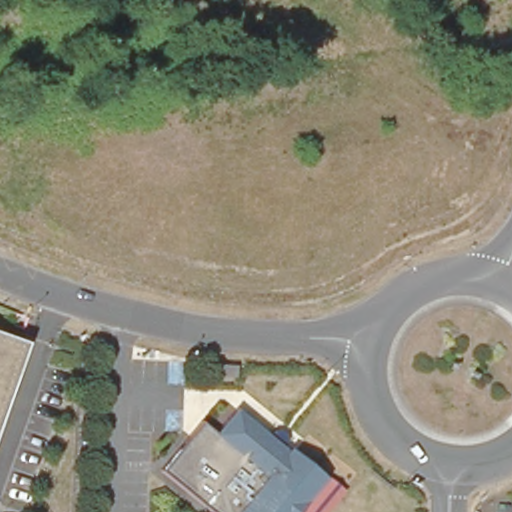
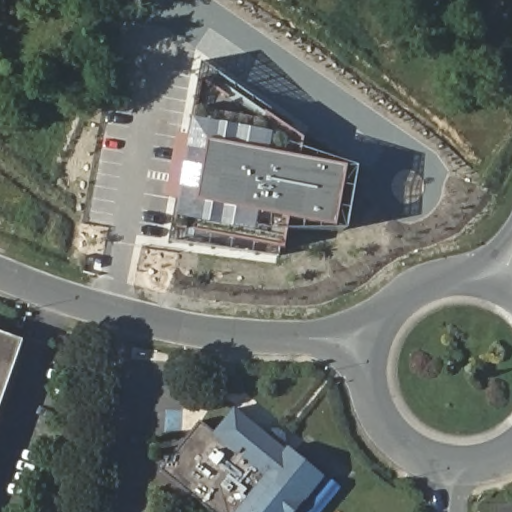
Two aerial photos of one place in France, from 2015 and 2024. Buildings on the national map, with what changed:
new [(176,229),(179,219),(183,199),(168,196),(179,135),(194,138),(197,120),(198,109),(202,79),(264,120),(268,114),(306,139),(304,160),(350,167),(339,226),(292,220),(286,249),(176,229)]
unchanged [(0,376),(0,329),(16,336),(0,376)]
unchanged [(213,434),(232,410),(347,494),(331,512),(216,512),(159,468),(197,422),(213,434)]

